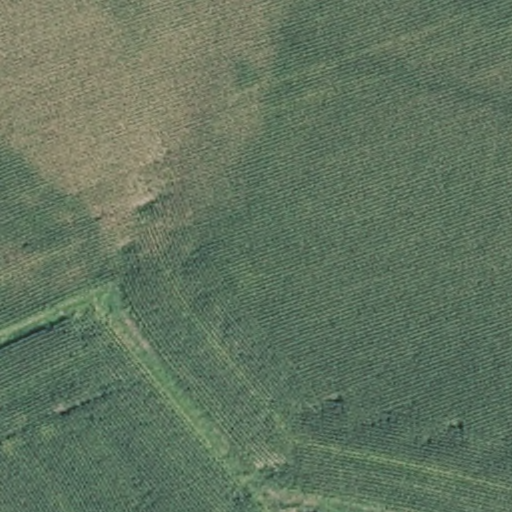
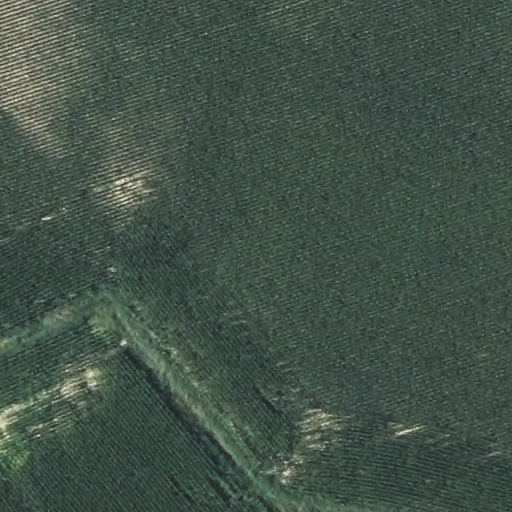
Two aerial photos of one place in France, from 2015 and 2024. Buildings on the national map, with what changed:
[]

